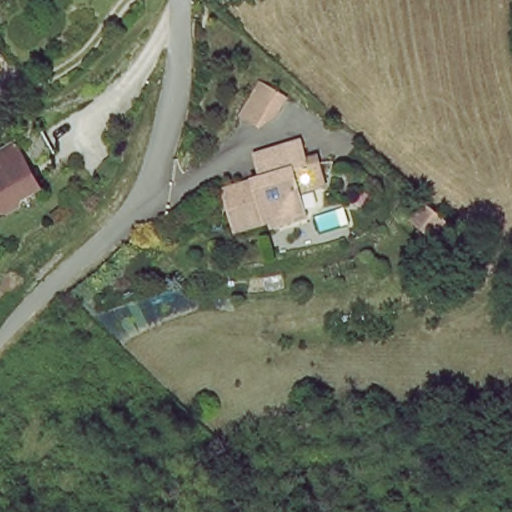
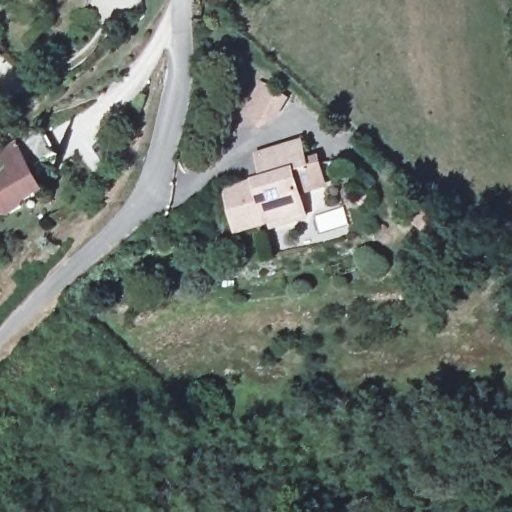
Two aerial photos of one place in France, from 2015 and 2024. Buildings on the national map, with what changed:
unchanged [(0,67),(0,56),(6,61),(0,67)]
unchanged [(288,96),(277,119),(261,129),(239,111),(254,79),(288,96)]
unchanged [(9,213),(2,211),(0,212),(0,171),(3,170),(0,164),(0,151),(39,129),(53,152),(27,167),(40,189),(21,200),(19,206),(9,213)]
unchanged [(258,178),(252,155),(303,141),(306,155),(329,159),(323,190),(303,194),(308,216),(232,233),(220,190),(258,178)]
unchanged [(410,222),(425,202),(454,229),(440,243),(410,222)]

